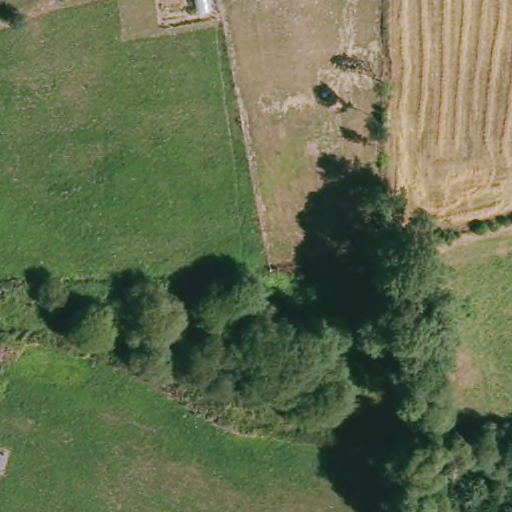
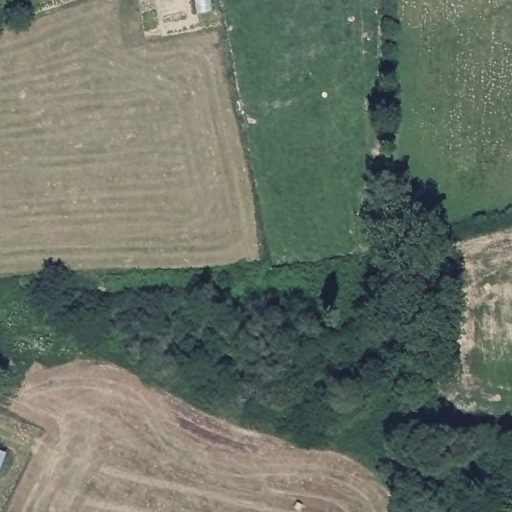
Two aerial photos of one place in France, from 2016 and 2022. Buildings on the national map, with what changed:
unchanged [(3,454),(0,462),(0,452),(3,454)]

